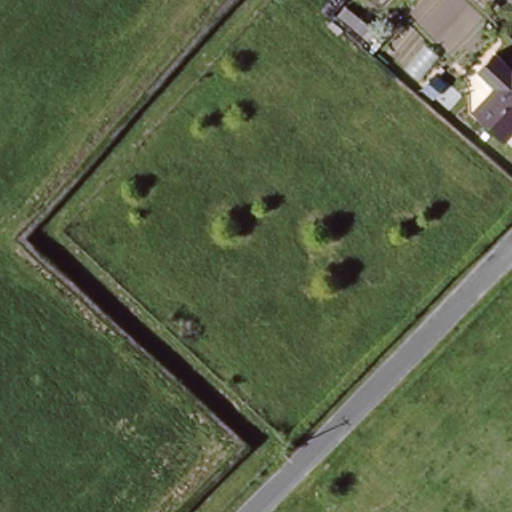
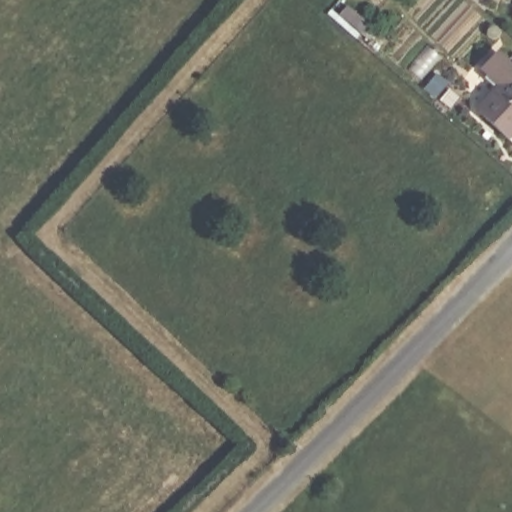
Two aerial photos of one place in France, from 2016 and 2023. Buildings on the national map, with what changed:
unchanged [(477,106),(497,84),(482,69),(499,50),(512,63),(512,138),(477,106)]

